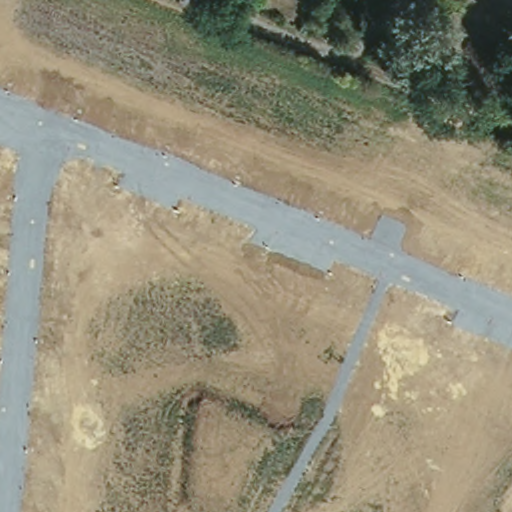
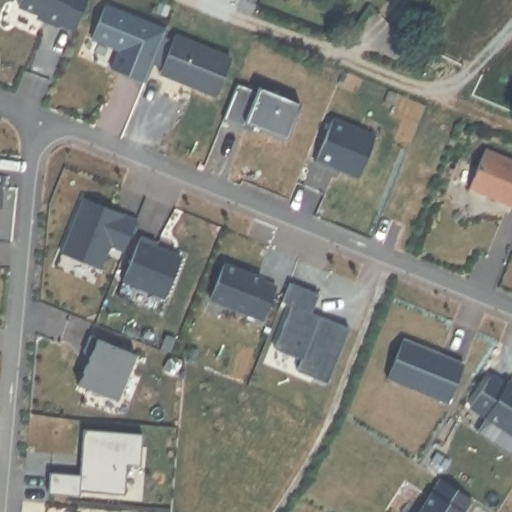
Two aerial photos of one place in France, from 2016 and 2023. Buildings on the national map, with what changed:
new [(72,24),(57,18),(57,20),(40,13),(42,10),(18,0),(82,0),(72,24)]
new [(92,34),(105,0),(164,24),(142,81),(111,66),(119,46),(114,44),(92,34)]
new [(172,30),(228,53),(213,91),(157,68),(172,30)]
new [(257,95),(259,89),(299,104),(286,140),(244,124),(226,118),(238,86),(257,95)]
new [(332,115),(374,132),(357,173),(331,162),(330,165),(313,159),(332,115)]
new [(512,157),(512,204),(467,185),(484,145),(512,157)]
new [(3,186),(0,215),(0,185),(3,186)]
new [(81,194),(134,216),(121,249),(107,243),(98,266),(58,250),(81,194)]
new [(137,234),(153,240),(152,243),(178,254),(162,294),(120,277),(137,234)]
new [(221,261),(260,277),(260,278),(273,284),(260,317),(207,296),(221,261)]
new [(289,302),(279,298),(287,279),(316,291),(308,309),(347,325),(324,380),(294,368),(299,356),(271,345),(289,302)]
new [(88,351),(80,348),(87,332),(133,351),(114,398),(75,382),(88,351)]
new [(401,336),(461,361),(445,401),(385,376),(401,336)]
new [(504,381),(506,379),(512,383),(512,433),(468,405),(489,372),(504,381)]
new [(81,476),(85,431),(140,435),(138,465),(126,464),(124,495),(80,492),(79,496),(50,494),(51,474),(81,476)]
new [(469,496),(460,509),(461,510),(459,512),(416,512),(439,476),(469,496)]

